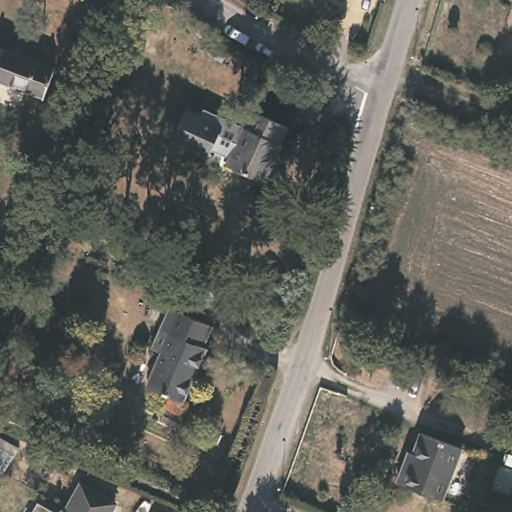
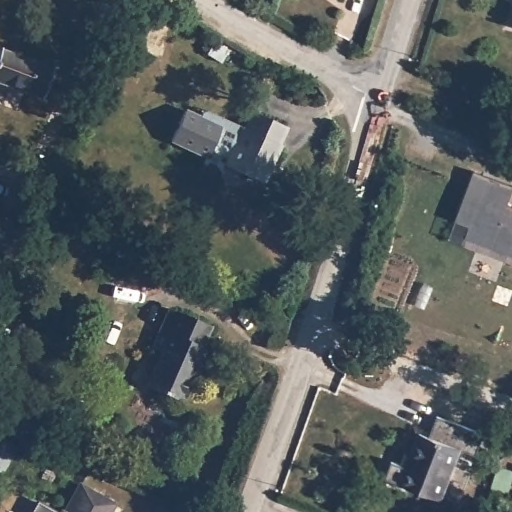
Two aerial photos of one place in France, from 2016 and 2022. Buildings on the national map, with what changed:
unchanged [(46,91),(0,73),(0,48),(3,48),(5,43),(56,63),(46,91)]
unchanged [(288,125),(266,183),(227,166),(229,159),(243,127),(250,108),(288,125)]
unchanged [(229,159),(211,151),(208,158),(196,153),(172,143),(184,113),(199,119),(202,110),(211,114),(223,119),(243,127),(229,159)]
new [(466,237),(472,224),(458,220),(475,172),(512,187),(512,193),(507,204),(512,206),(512,255),(466,237)]
unchanged [(212,322),(204,342),(209,344),(186,402),(150,388),(165,350),(152,343),(161,320),(168,323),(176,304),(212,322)]
unchanged [(512,398),(512,417),(508,416),(503,425),(488,419),(498,393),(512,398)]
unchanged [(462,443),(444,494),(398,477),(403,460),(409,462),(420,429),(462,443)]
unchanged [(0,436),(19,446),(5,475),(0,472),(0,436)]
unchanged [(113,506),(109,512),(65,512),(84,485),(113,506)]
unchanged [(39,494),(64,512),(26,512),(39,494)]

